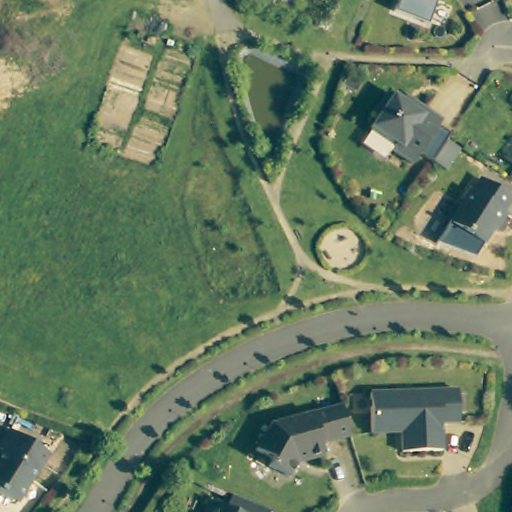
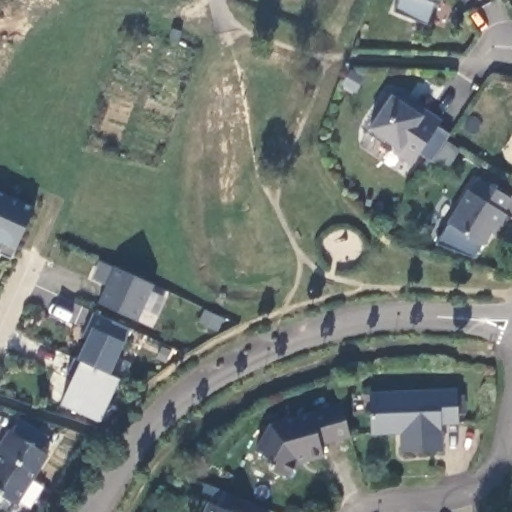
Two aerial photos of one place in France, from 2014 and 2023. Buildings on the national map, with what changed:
unchanged [(426,0),(437,0),(436,3),(426,0)]
unchanged [(433,123),(403,168),(382,156),(387,151),(362,133),(372,120),(364,115),(379,100),(392,111),(400,100),(433,123)]
unchanged [(460,137),(446,159),(432,151),(446,129),(460,137)]
unchanged [(510,159),(512,156),(512,160),(510,159)]
unchanged [(507,196),(498,210),(501,212),(492,227),(489,225),(478,243),(444,222),(464,189),(466,191),(475,177),(507,196)]
new [(12,259),(0,253),(0,193),(36,209),(12,259)]
new [(154,285),(137,320),(98,303),(115,268),(154,285)]
new [(81,361),(77,359),(86,339),(83,337),(95,312),(130,330),(109,375),(120,379),(100,422),(60,403),(81,361)]
unchanged [(437,418),(438,446),(399,449),(397,429),(367,431),(365,391),(452,385),(452,389),(460,389),(461,407),(453,407),(455,417),(437,418)]
unchanged [(315,438),(317,449),(302,454),(299,452),(292,454),(282,471),(262,459),(266,452),(250,443),(262,424),(275,420),(273,416),(336,399),(340,412),(345,429),(315,438)]
unchanged [(19,500),(11,501),(0,494),(0,459),(3,454),(0,452),(0,447),(10,433),(47,456),(19,500)]
unchanged [(267,512),(201,512),(205,503),(222,510),(228,498),(267,512)]

